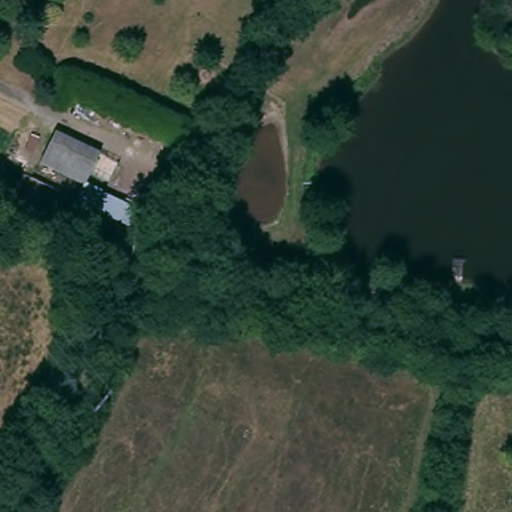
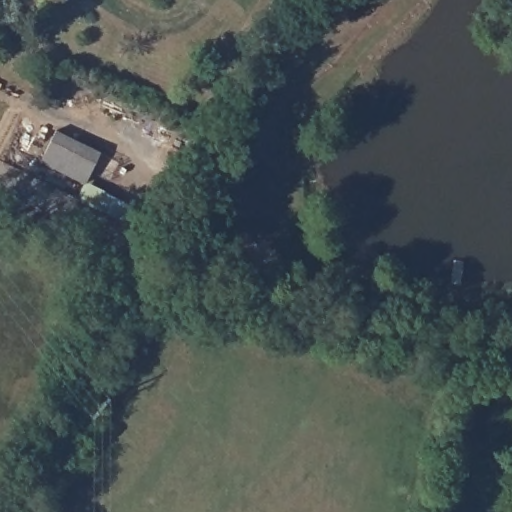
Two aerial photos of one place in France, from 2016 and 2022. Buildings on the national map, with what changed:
unchanged [(101,149),(85,182),(40,159),(57,127),(101,149)]

